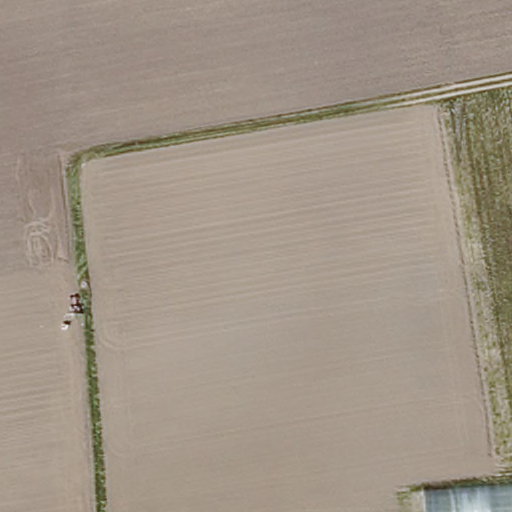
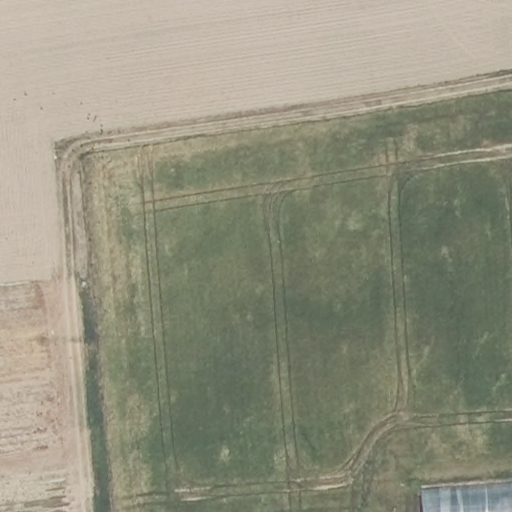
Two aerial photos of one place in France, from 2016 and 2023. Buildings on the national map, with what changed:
unchanged [(512,482),(512,512),(425,512),(424,491),(512,482)]

